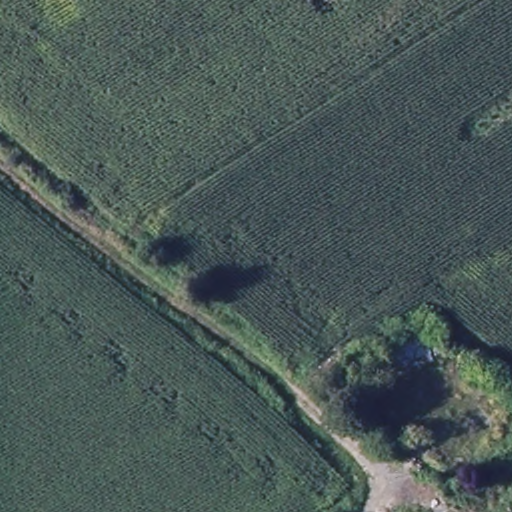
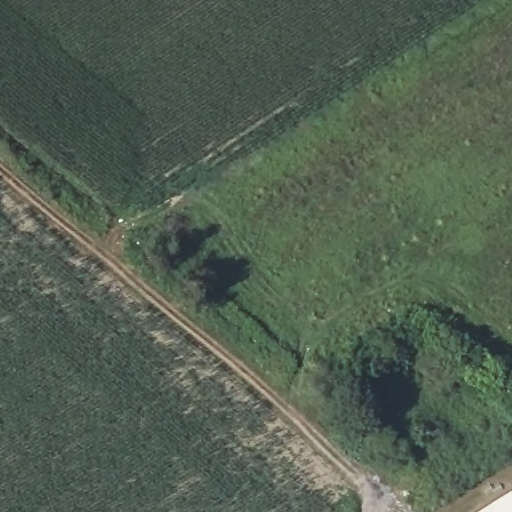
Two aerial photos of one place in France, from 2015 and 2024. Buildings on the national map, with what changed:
unchanged [(428,331),(443,358),(418,373),(401,346),(428,331)]
new [(512,512),(475,512),(512,489),(512,512)]

